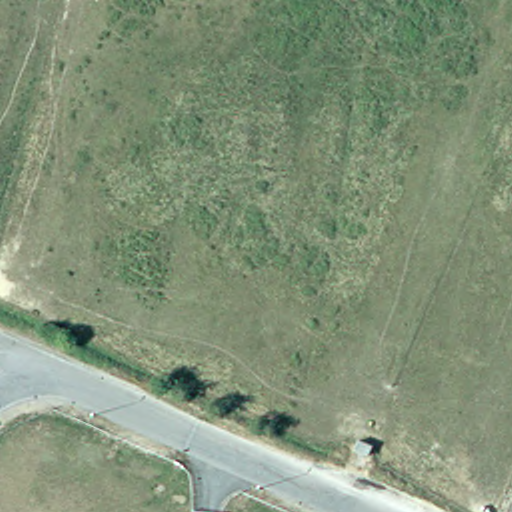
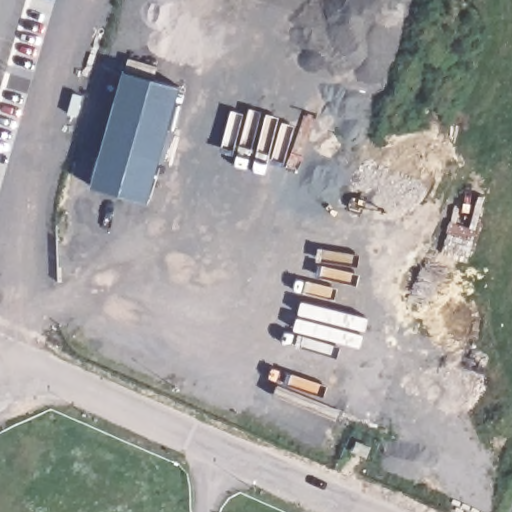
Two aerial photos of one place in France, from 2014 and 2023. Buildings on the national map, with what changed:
new [(124,67),(178,82),(145,197),(91,182),(124,67)]
unchanged [(351,459),(363,465),(359,474),(347,468),(351,459)]

